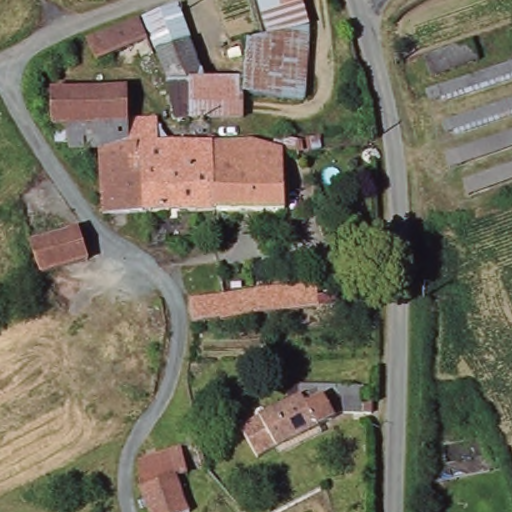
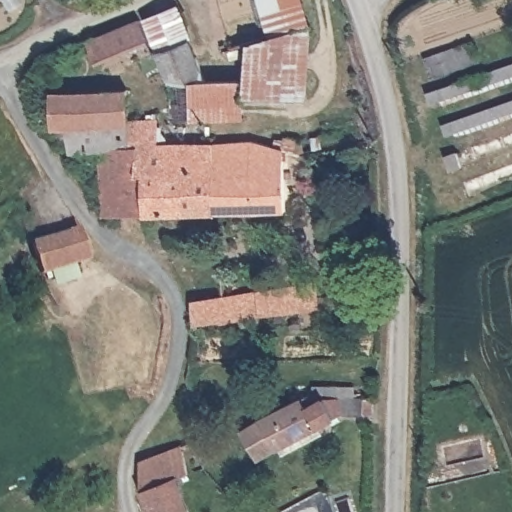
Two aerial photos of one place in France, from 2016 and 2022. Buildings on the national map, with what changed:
unchanged [(306,18),(301,35),(275,35),(263,39),(254,0),(301,0),(306,18)]
unchanged [(142,19),(174,6),(197,58),(230,48),(245,44),(245,49),(244,74),(243,79),(241,79),(239,79),(203,81),(169,82),(142,19)]
unchanged [(145,74),(134,47),(95,63),(86,43),(138,21),(156,64),(157,68),(145,74)]
unchanged [(275,35),(301,35),(301,72),(301,97),(242,97),(241,79),(243,79),(244,74),(245,49),(245,44),(258,40),(263,39),(275,35)]
unchanged [(435,81),(430,61),(486,43),(494,65),(435,81)]
unchanged [(512,66),(512,75),(435,99),(432,91),(512,66)]
unchanged [(244,118),(168,122),(169,82),(203,81),(239,79),(241,79),(242,97),(244,118)]
unchanged [(63,128),(50,128),(50,92),(126,91),(127,122),(155,122),(156,146),(211,143),(213,211),(124,214),(98,215),(96,168),(95,152),(65,153),(63,128)]
unchanged [(512,100),(512,113),(445,134),(440,122),(512,100)]
unchanged [(512,130),(512,141),(448,161),(445,150),(512,130)]
unchanged [(211,143),(255,140),(283,147),(286,209),(213,211),(211,143)]
unchanged [(512,176),(465,190),(461,178),(512,162),(512,176)]
unchanged [(87,263),(49,274),(42,276),(35,257),(30,244),(72,233),(79,231),(87,263)]
unchanged [(200,297),(199,285),(216,283),(215,273),(228,272),(230,292),(312,278),(318,305),(293,310),(202,320),(200,297)]
unchanged [(277,449),(273,442),(251,456),(236,430),(312,389),(317,397),(325,395),(341,395),(371,397),(371,414),(333,410),(313,421),(317,428),(277,449)]
unchanged [(182,472),(170,477),(185,512),(144,512),(134,485),(131,460),(133,457),(174,442),(182,472)]

